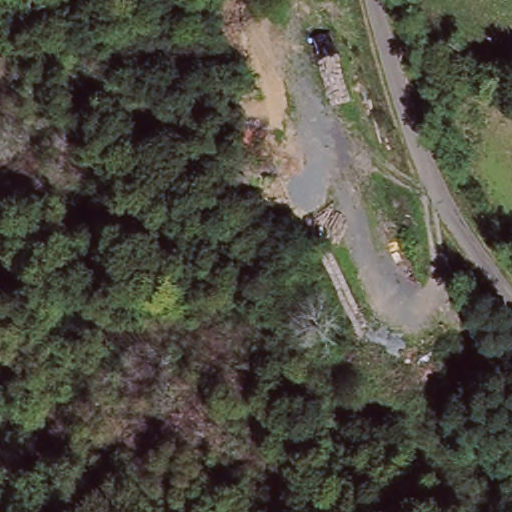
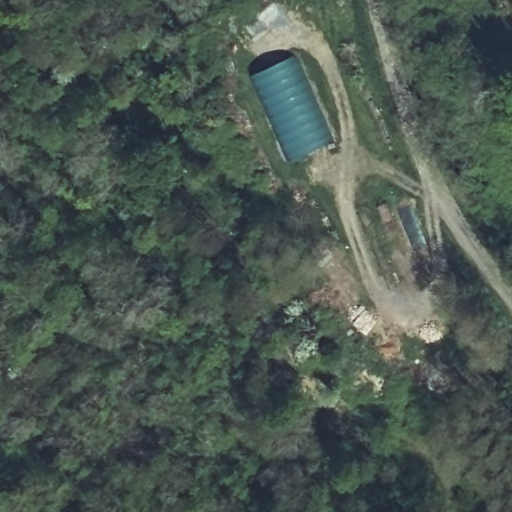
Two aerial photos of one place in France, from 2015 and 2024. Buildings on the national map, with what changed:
new [(296,55),(335,141),(290,159),(252,73),(296,55)]

